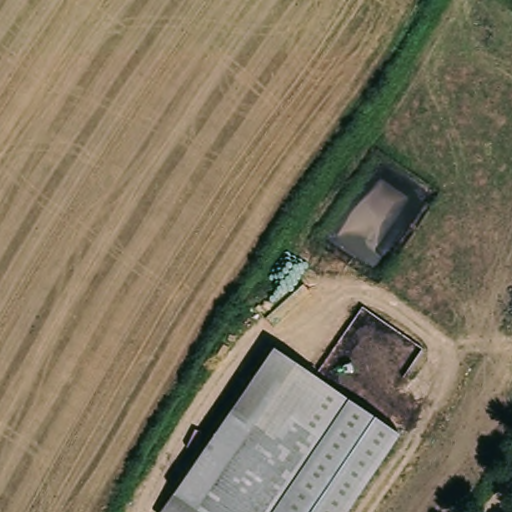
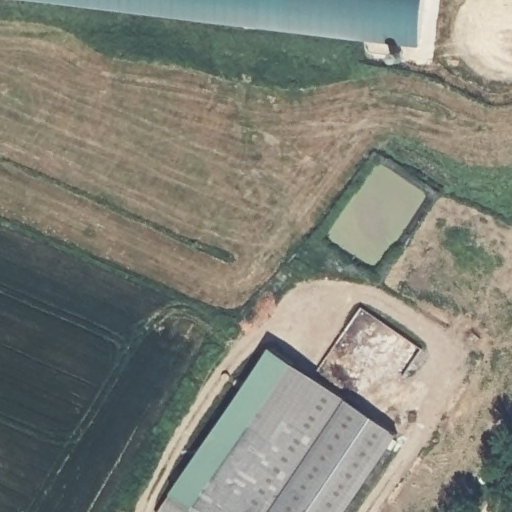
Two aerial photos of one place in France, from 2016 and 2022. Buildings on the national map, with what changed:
new [(425,0),(419,46),(40,0),(425,0)]
unchanged [(278,349),(396,427),(340,512),(284,512),(329,442),(289,413),(276,432),(237,406),(278,349)]
unchanged [(176,488),(237,406),(276,432),(289,413),(329,442),(284,512),(162,512),(176,488)]

